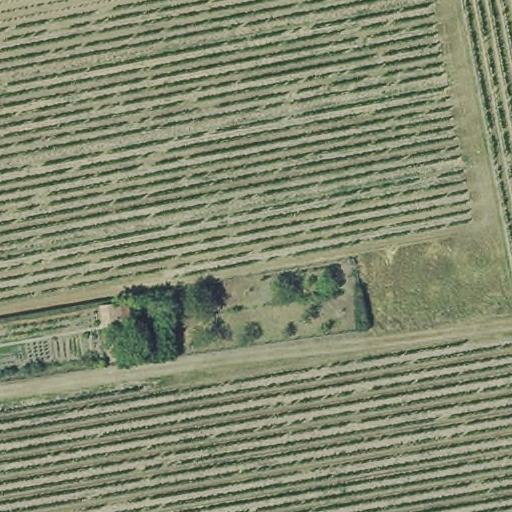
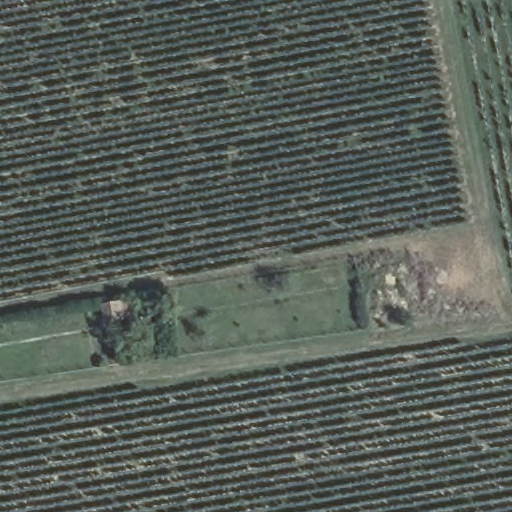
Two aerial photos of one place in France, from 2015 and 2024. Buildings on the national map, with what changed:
unchanged [(100,308),(113,305),(125,303),(128,320),(116,321),(103,324),(100,308)]

